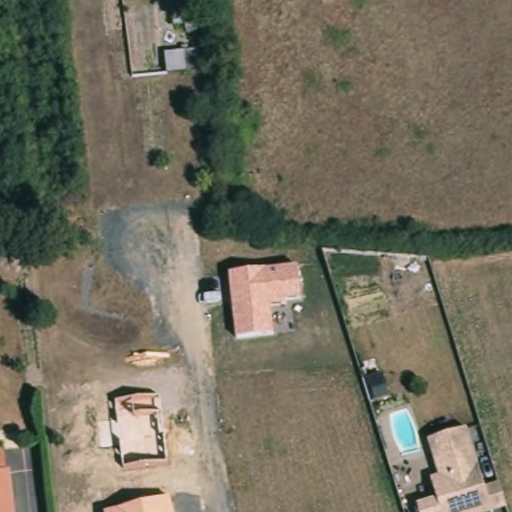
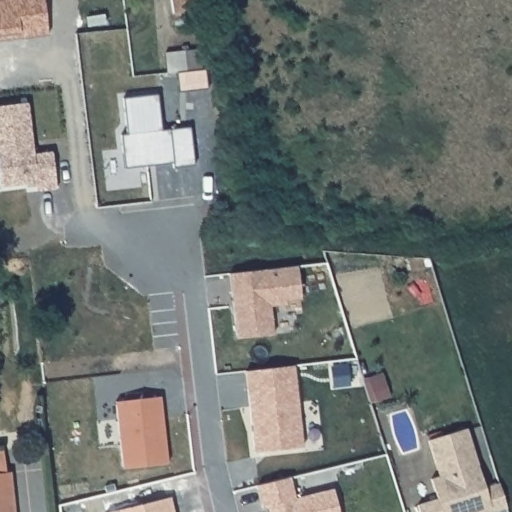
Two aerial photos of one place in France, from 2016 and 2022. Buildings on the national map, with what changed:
unchanged [(205,4),(178,10),(176,0),(205,0),(205,4)]
new [(123,135),(120,99),(155,96),(158,132),(187,130),(190,169),(169,171),(168,166),(120,170),(117,136),(123,135)]
new [(0,176),(0,106),(26,103),(33,154),(52,152),(55,183),(56,189),(39,192),(38,185),(1,188),(0,176)]
unchanged [(229,273),(295,267),(299,300),(269,305),(272,332),(235,337),(229,273)]
new [(255,452),(245,372),(294,366),(302,447),(255,452)]
unchanged [(158,396),(167,462),(123,470),(115,402),(158,396)]
unchanged [(440,487),(448,484),(438,447),(476,436),(488,477),(503,473),(510,497),(466,510),(458,512),(425,512),(446,507),(440,487)]
new [(339,475),(347,507),(327,512),(279,512),(274,491),(267,492),(262,471),(295,462),(300,483),(339,475)]
unchanged [(9,471),(11,512),(0,512),(0,471),(9,471)]
unchanged [(173,512),(107,512),(168,496),(173,512)]

